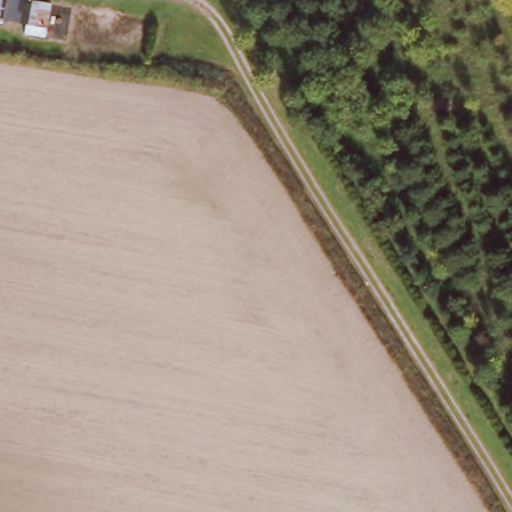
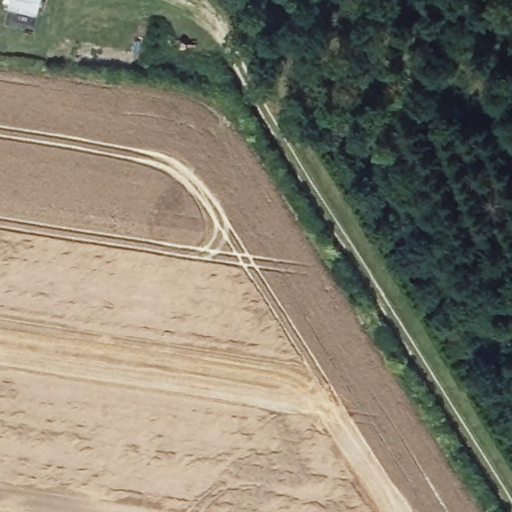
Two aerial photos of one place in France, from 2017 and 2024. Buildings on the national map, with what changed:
unchanged [(49,27),(3,23),(7,0),(33,0),(50,2),(49,27)]

